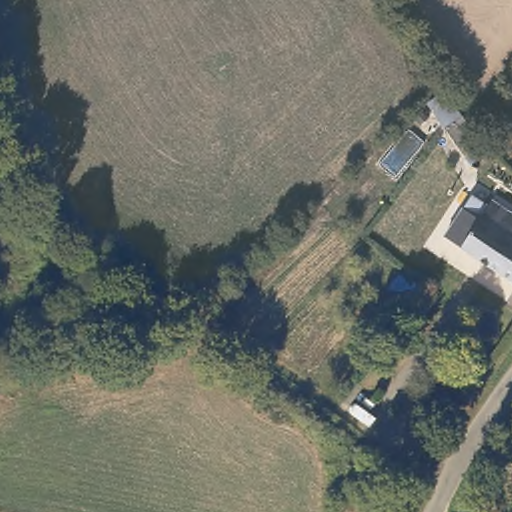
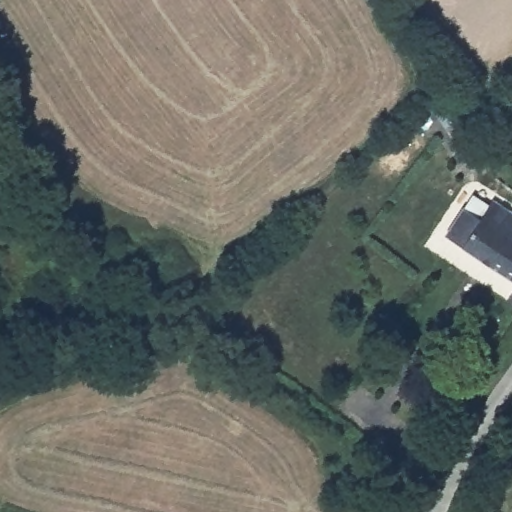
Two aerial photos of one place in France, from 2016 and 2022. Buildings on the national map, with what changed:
unchanged [(482,144),(464,159),(456,145),(445,131),(461,117),(482,144)]
unchanged [(512,217),(512,282),(448,242),(438,235),(454,205),(473,215),(484,199),(512,217)]

